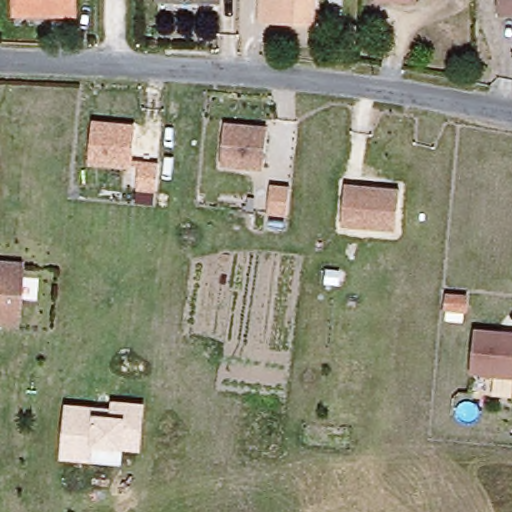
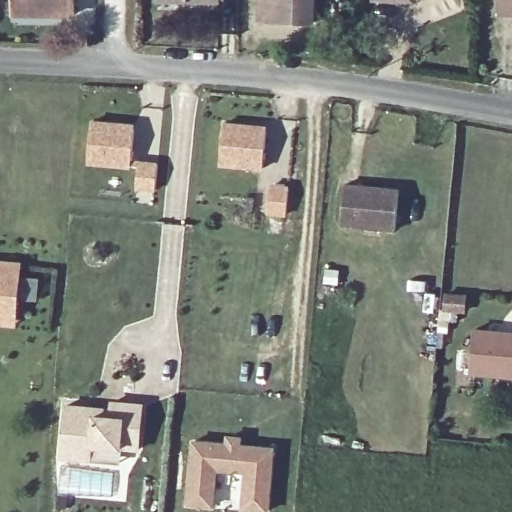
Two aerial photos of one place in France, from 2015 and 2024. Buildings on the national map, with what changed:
unchanged [(12,18),(12,0),(68,0),(68,19),(12,18)]
unchanged [(212,0),(212,1),(159,0),(212,0)]
unchanged [(256,2),(272,1),(272,0),(307,0),(307,26),(256,24),(256,2)]
unchanged [(396,0),(402,0),(402,1),(396,0)]
unchanged [(499,15),(499,9),(493,9),(493,0),(512,0),(512,16),(499,15)]
unchanged [(136,124),(131,169),(85,164),(90,120),(136,124)]
unchanged [(225,126),(242,127),(242,130),(267,132),(264,171),(221,167),(225,126)]
unchanged [(400,192),(395,232),(341,227),(345,187),(400,192)]
unchanged [(0,266),(17,267),(14,315),(12,327),(0,326),(0,266)]
unchanged [(502,335),(501,340),(512,341),(512,379),(471,376),(475,332),(502,335)]
unchanged [(97,407),(96,415),(110,416),(112,399),(142,402),(139,450),(92,445),(91,459),(62,457),(67,406),(97,407)]
new [(275,447),(270,512),(242,508),(245,472),(218,471),(215,510),(185,506),(191,440),(275,447)]

